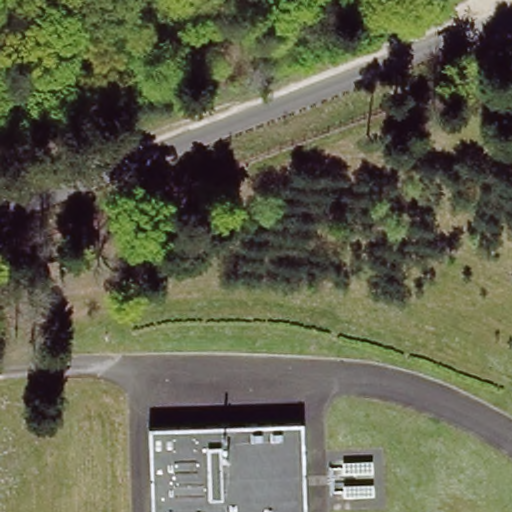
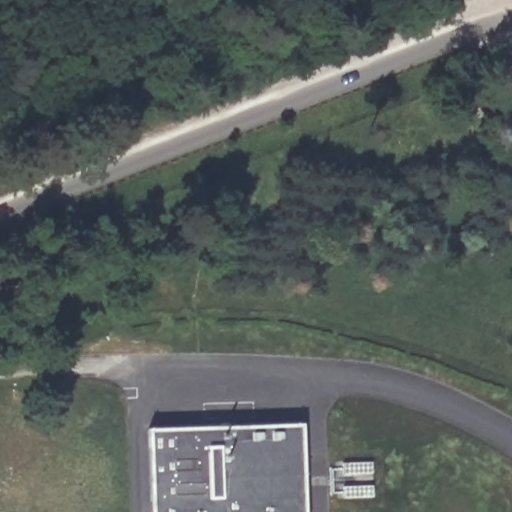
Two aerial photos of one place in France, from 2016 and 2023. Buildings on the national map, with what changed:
unchanged [(302,421),(306,512),(150,512),(147,426),(302,421)]

